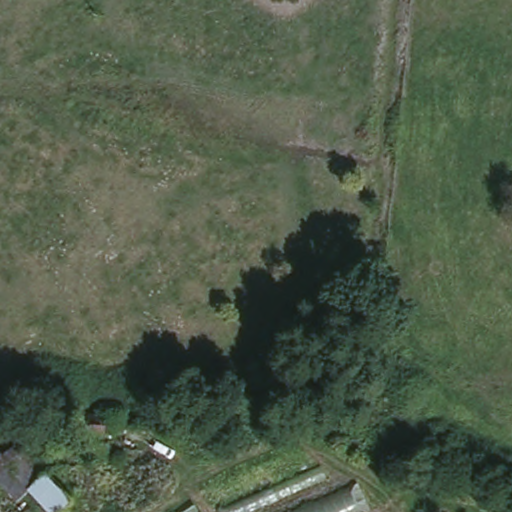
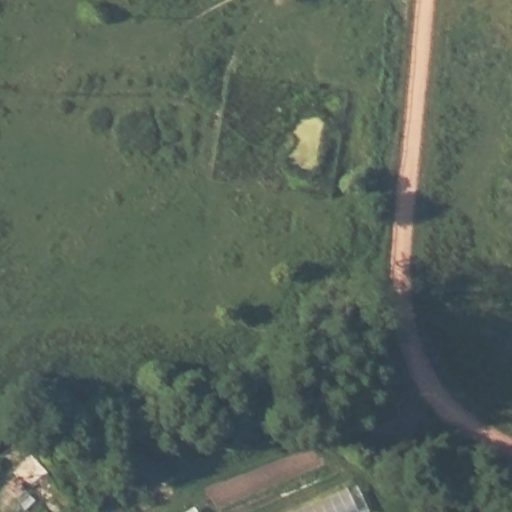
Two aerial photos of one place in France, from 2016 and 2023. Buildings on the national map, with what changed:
unchanged [(7,468),(0,472),(0,452),(19,438),(47,467),(45,471),(71,501),(58,512),(49,512),(26,488),(7,468)]
unchanged [(252,512),(218,512),(217,509),(322,463),(329,478),(252,512)]
unchanged [(367,512),(294,512),(358,483),(371,510),(367,512)]
unchanged [(182,512),(194,504),(199,512),(182,512)]

